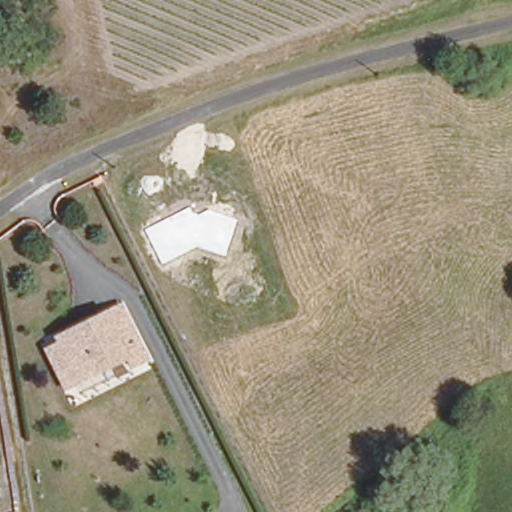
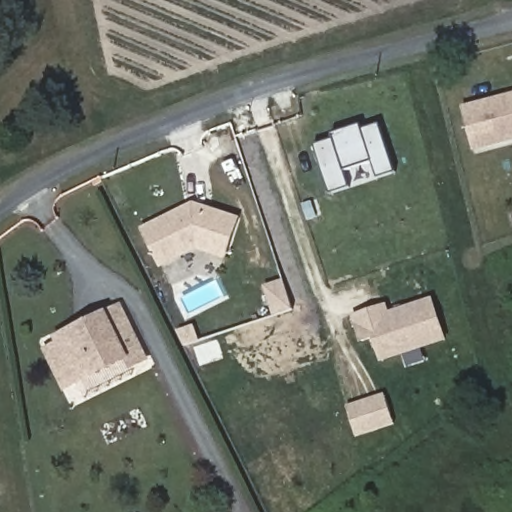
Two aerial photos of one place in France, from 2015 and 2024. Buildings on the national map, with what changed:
new [(464,106),(512,95),(512,138),(474,147),(464,106)]
new [(315,146),(335,139),(333,134),(361,125),(362,130),(381,124),(397,173),(379,179),(373,162),(346,172),(351,188),(331,195),(315,146)]
new [(196,201),(242,220),(228,257),(197,244),(165,261),(147,226),(196,201)]
new [(282,282),(291,309),(273,315),(264,288),(282,282)]
new [(386,306),(389,314),(433,300),(446,340),(382,360),(375,337),(363,341),(355,316),(386,306)]
unchanged [(56,342),(54,334),(85,319),(103,310),(116,303),(130,328),(144,356),(129,365),(124,355),(76,380),(63,387),(44,349),(56,342)]
new [(357,438),(346,406),(385,394),(395,426),(357,438)]

